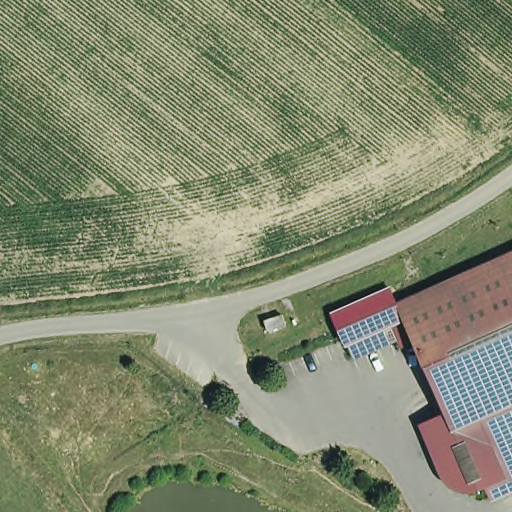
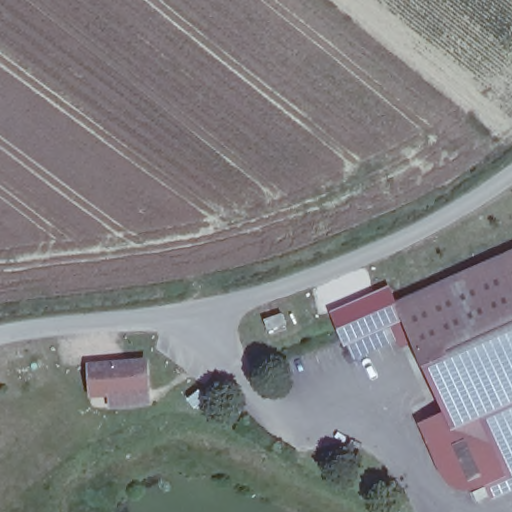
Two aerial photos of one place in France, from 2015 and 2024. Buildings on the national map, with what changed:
unchanged [(490,486),(480,491),(472,492),(464,492),(453,486),(424,424),(444,413),(415,347),(407,351),(396,327),(348,348),(333,312),(393,285),(401,302),(512,252),(512,495),(496,502),(490,486)]
unchanged [(272,332),(266,321),(283,313),(289,326),(272,332)]
new [(110,409),(109,397),(91,398),(88,363),(150,358),(153,406),(110,409)]

